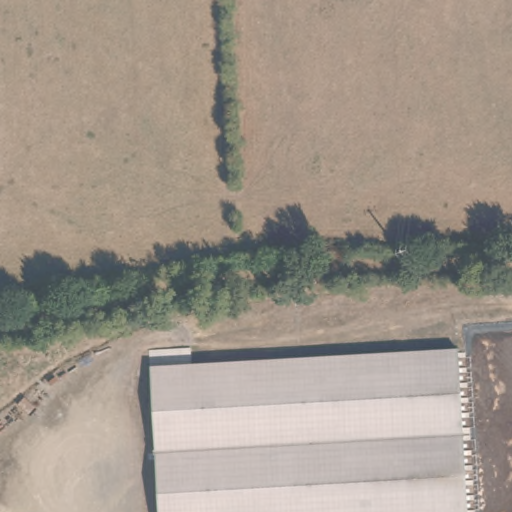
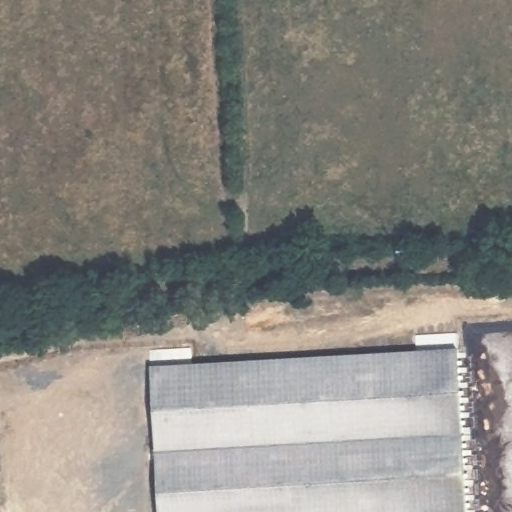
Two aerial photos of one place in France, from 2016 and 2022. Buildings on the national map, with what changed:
unchanged [(460,354),(466,512),(154,512),(149,365),(211,363),(460,354)]

